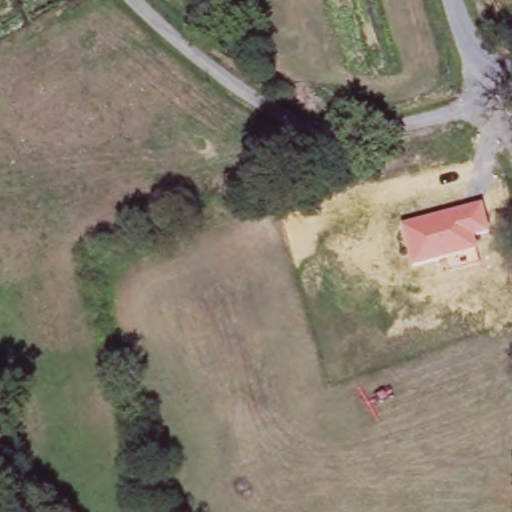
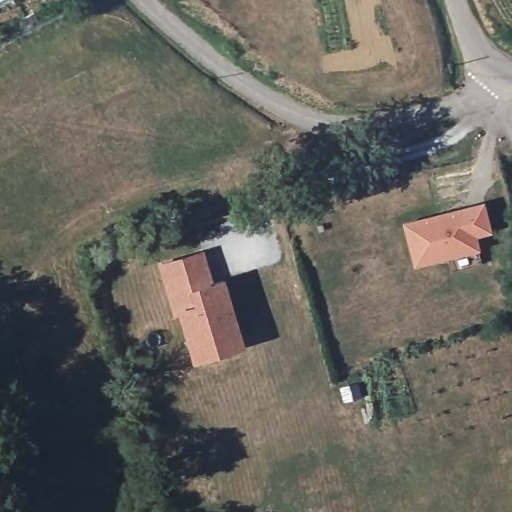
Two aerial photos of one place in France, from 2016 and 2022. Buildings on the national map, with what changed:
unchanged [(401,223),(484,201),(491,232),(477,236),(479,247),(413,266),(401,223)]
new [(176,310),(171,311),(157,267),(203,252),(213,282),(224,278),(245,347),(194,362),(176,310)]

